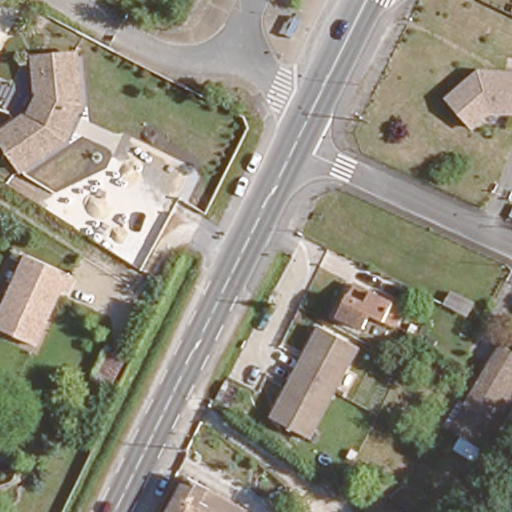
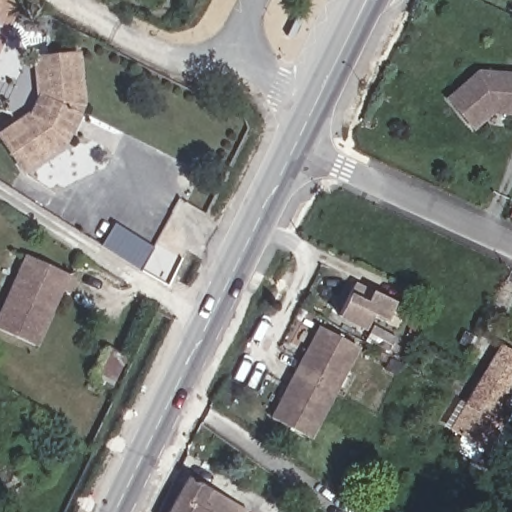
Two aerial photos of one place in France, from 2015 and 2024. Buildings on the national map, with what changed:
unchanged [(77,110),(60,146),(19,170),(0,139),(0,131),(28,115),(34,103),(29,66),(70,60),(77,110)]
unchanged [(512,71),(512,118),(492,117),(473,131),(445,100),(480,69),(512,71)]
new [(115,223),(154,248),(140,271),(101,245),(115,223)]
unchanged [(69,273),(62,289),(57,288),(34,345),(0,331),(0,305),(21,254),(69,273)]
unchanged [(406,313),(395,332),(370,318),(362,330),(338,319),(356,287),(406,313)]
unchanged [(360,349),(311,442),(268,419),(319,329),(360,349)]
unchanged [(512,359),(512,409),(509,414),(504,410),(472,454),(447,441),(504,354),(512,359)]
unchanged [(183,479),(248,512),(166,512),(183,479)]

